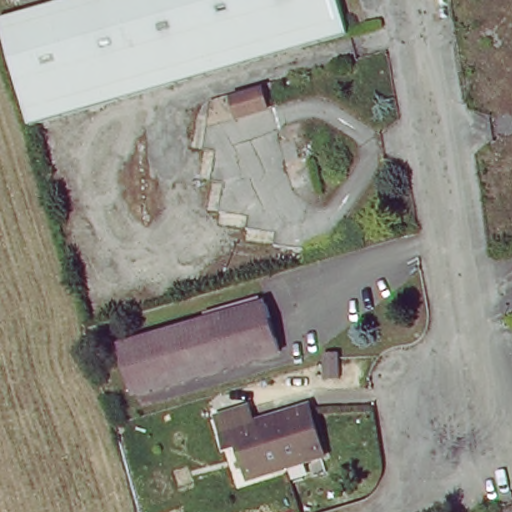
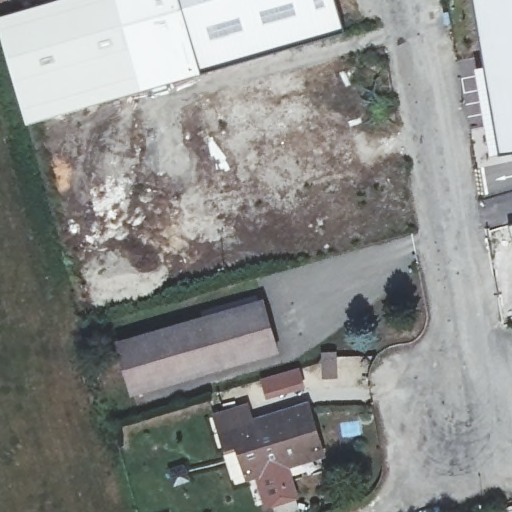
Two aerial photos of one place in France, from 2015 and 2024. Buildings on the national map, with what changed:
unchanged [(25,115),(0,26),(0,8),(29,0),(340,0),(350,33),(25,115)]
new [(475,67),(484,65),(473,0),(512,0),(512,151),(498,154),(491,155),(475,67)]
demolished [(230,93),(258,86),(263,106),(235,113),(230,93)]
unchanged [(116,337),(258,297),(275,347),(131,385),(116,337)]
unchanged [(317,358),(317,350),(345,349),(345,358),(344,375),(319,376),(317,358)]
new [(302,367),(307,386),(267,397),(260,377),(302,367)]
unchanged [(216,411),(252,402),(256,417),(310,403),(325,450),(287,461),(248,473),(238,442),(227,445),(216,411)]

